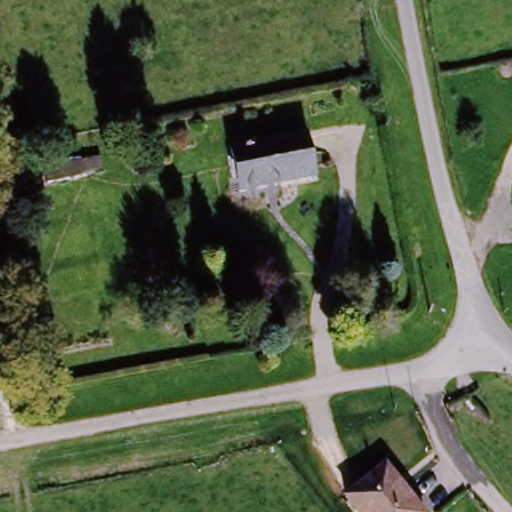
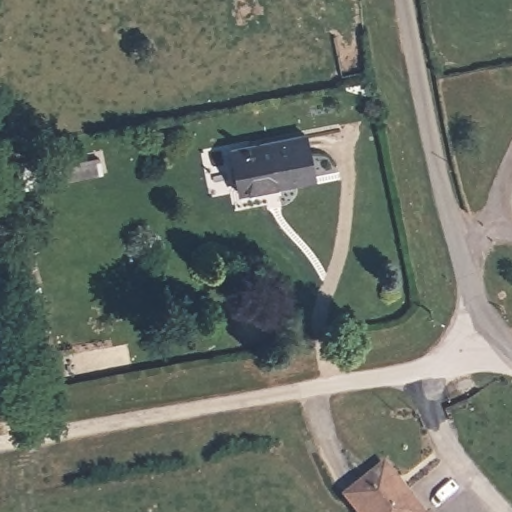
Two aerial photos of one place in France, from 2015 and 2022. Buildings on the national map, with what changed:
unchanged [(317,180),(243,196),(234,157),(307,141),(317,180)]
unchanged [(43,164),(95,152),(100,174),(47,185),(43,164)]
unchanged [(372,477),(380,472),(395,491),(412,512),(351,512),(342,500),(372,477)]

